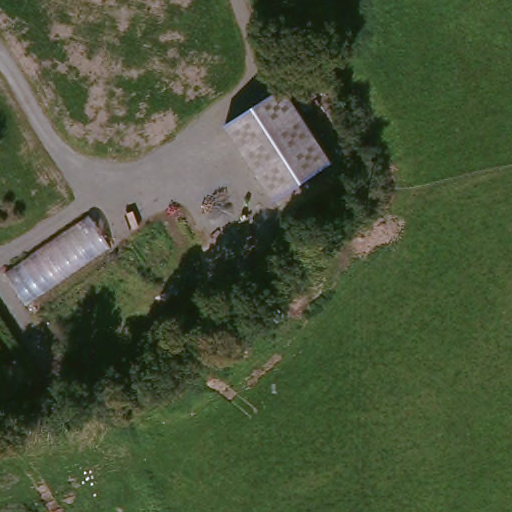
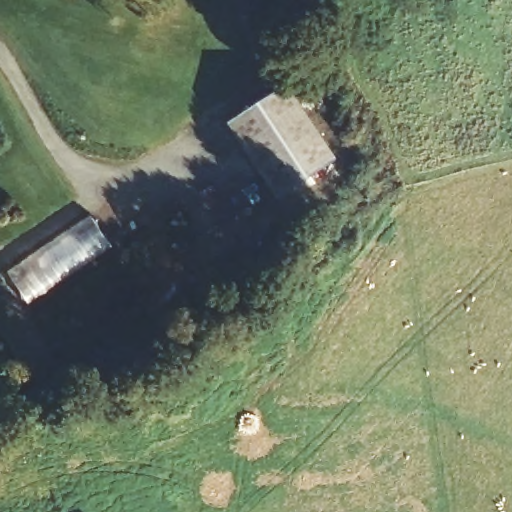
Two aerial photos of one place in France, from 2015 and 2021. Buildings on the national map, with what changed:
unchanged [(335,147),(286,198),(222,135),(271,85),(335,147)]
unchanged [(88,219),(109,250),(28,305),(7,276),(88,219)]

